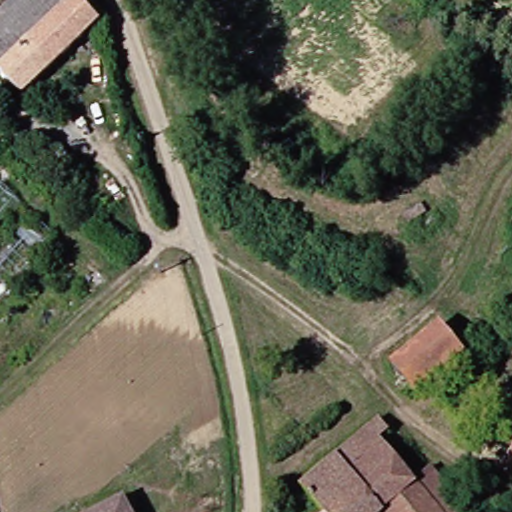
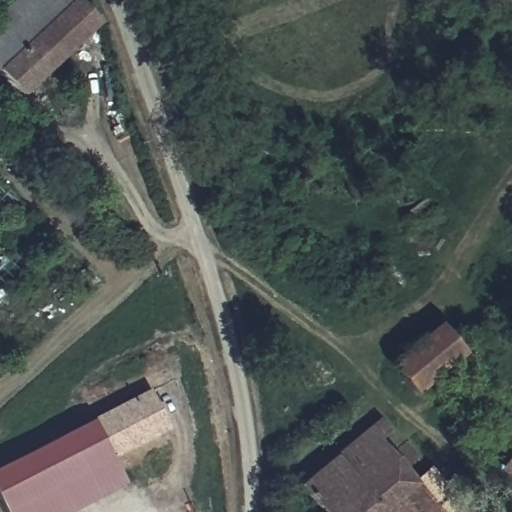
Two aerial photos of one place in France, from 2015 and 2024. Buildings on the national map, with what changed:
unchanged [(89,28),(8,94),(0,85),(0,7),(9,0),(66,0),(89,28)]
unchanged [(401,386),(384,360),(432,324),(452,352),(401,386)]
new [(171,429),(114,458),(128,484),(74,512),(6,512),(0,500),(0,468),(150,388),(171,429)]
unchanged [(362,512),(312,512),(288,479),(371,416),(380,428),(369,438),(408,484),(430,512),(379,512),(371,502),(362,512)]
unchanged [(495,461),(512,438),(512,474),(495,461)]
unchanged [(424,470),(455,512),(430,512),(408,484),(424,470)]
demolished [(91,512),(111,501),(116,512),(91,512)]

